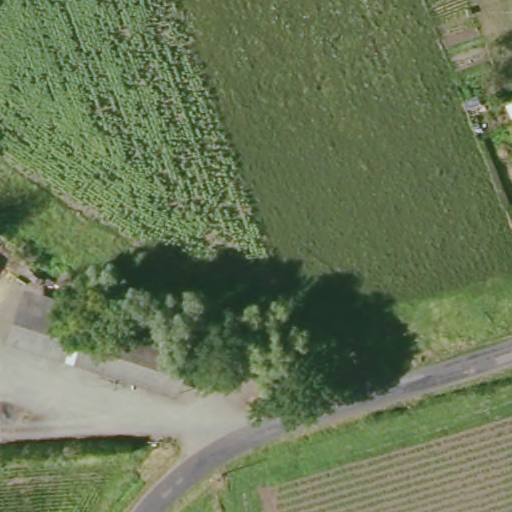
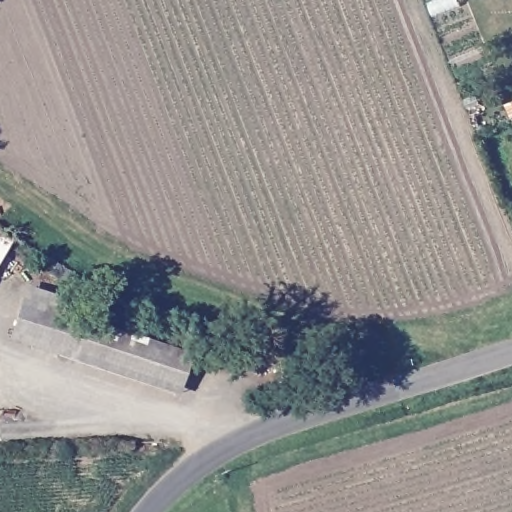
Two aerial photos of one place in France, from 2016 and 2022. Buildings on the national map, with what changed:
unchanged [(181,390),(14,344),(25,303),(188,350),(181,390)]

